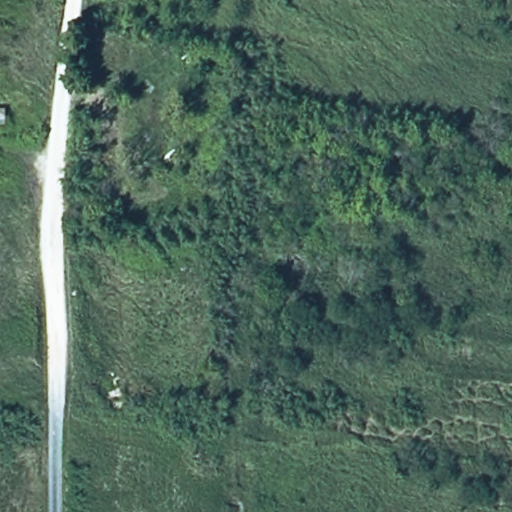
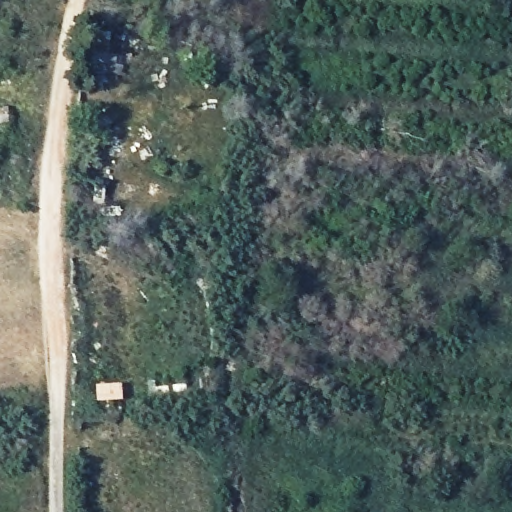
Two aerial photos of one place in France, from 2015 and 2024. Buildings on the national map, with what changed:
unchanged [(10,109),(10,124),(0,123),(0,109),(10,109)]

